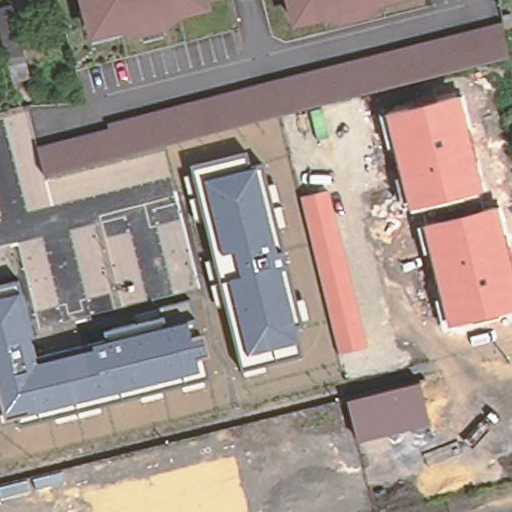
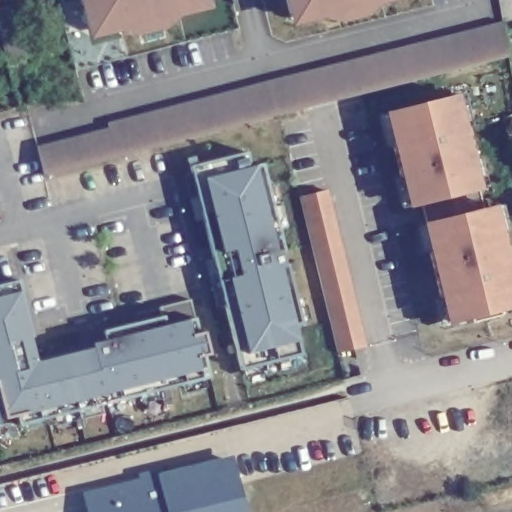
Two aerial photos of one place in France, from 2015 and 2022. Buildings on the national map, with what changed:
unchanged [(211,9),(178,17),(168,29),(132,37),(125,30),(88,39),(78,0),(209,0),(211,9)]
unchanged [(380,5),(370,16),(337,25),(327,17),(291,26),(284,0),(399,0),(380,5)]
unchanged [(107,128),(107,122),(502,21),(507,56),(43,176),(36,147),(107,128)]
unchanged [(422,224),(428,222),(425,205),(409,209),(385,113),(460,92),(483,190),(487,206),(497,204),(512,269),(512,309),(447,325),(422,224)]
unchanged [(191,168),(247,152),(250,167),(265,164),(302,325),(295,326),(302,355),(241,368),(191,168)]
unchanged [(300,196),(328,189),(367,346),(339,353),(300,196)]
unchanged [(22,292),(33,335),(30,337),(37,360),(91,347),(90,345),(107,340),(104,330),(137,322),(134,314),(190,300),(198,334),(202,333),(207,355),(204,355),(208,376),(19,423),(17,415),(5,418),(0,398),(0,286),(19,281),(22,292)]
demolished [(347,402),(424,389),(431,425),(356,444),(347,402)]
new [(87,512),(82,492),(140,477),(138,472),(155,468),(157,473),(232,453),(248,512),(87,512)]

